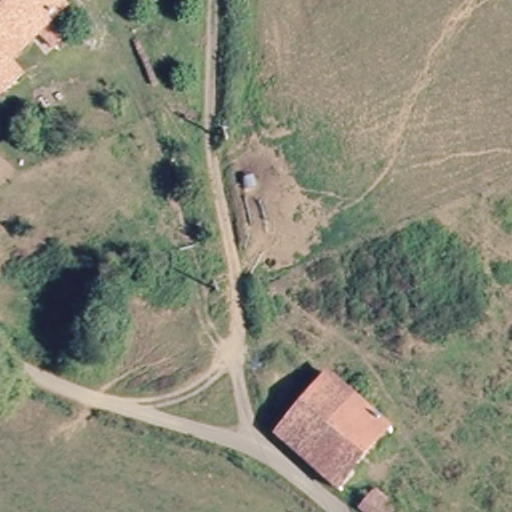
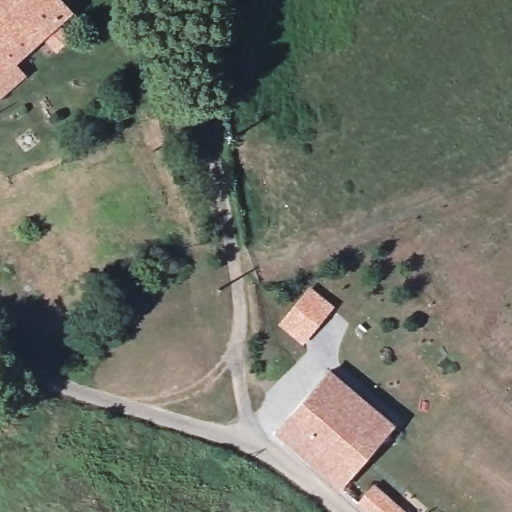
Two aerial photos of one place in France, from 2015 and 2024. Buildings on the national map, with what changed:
unchanged [(0,90),(0,0),(59,0),(82,23),(67,36),(58,26),(20,63),(28,71),(5,94),(0,90)]
new [(302,346),(278,325),(310,286),(334,307),(302,346)]
unchanged [(322,376),(383,432),(332,487),(272,431),(322,376)]
unchanged [(387,494),(407,512),(379,512),(375,507),(387,494)]

